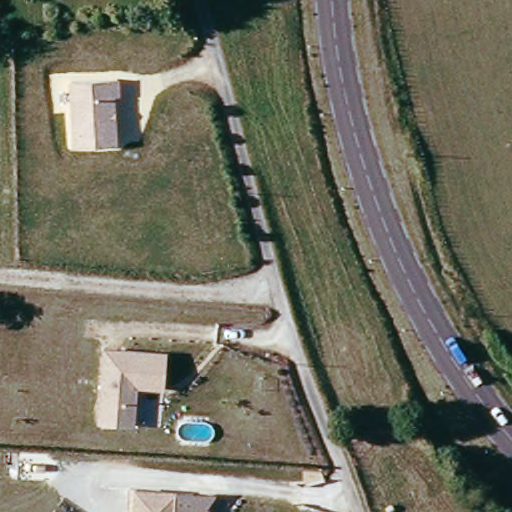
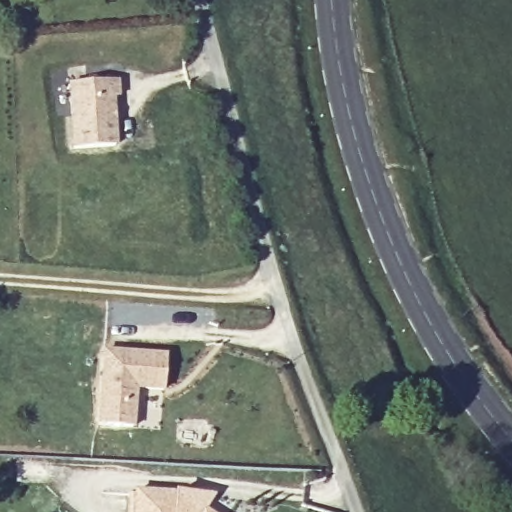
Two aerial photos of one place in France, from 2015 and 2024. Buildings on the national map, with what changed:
unchanged [(110,148),(69,149),(70,85),(115,83),(115,100),(110,100),(110,148)]
unchanged [(103,348),(169,354),(165,390),(140,388),(135,427),(96,425),(103,348)]
unchanged [(219,493),(207,510),(211,512),(129,512),(130,490),(219,493)]

